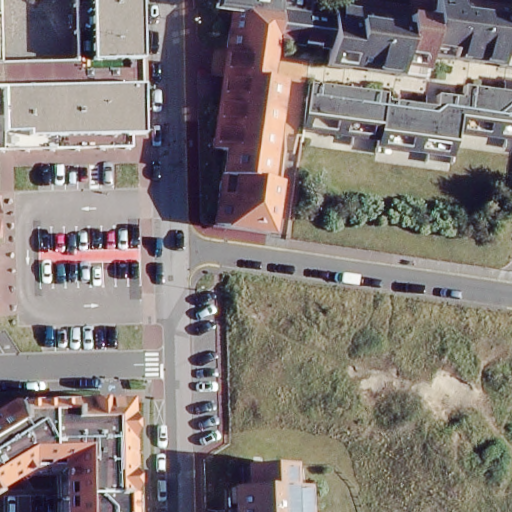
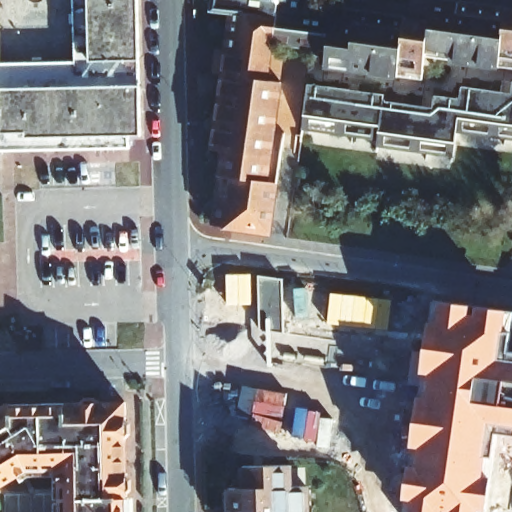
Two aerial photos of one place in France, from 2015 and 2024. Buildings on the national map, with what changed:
unchanged [(87,60),(86,0),(136,0),(137,60),(87,60)]
unchanged [(334,40),(273,31),(229,25),(231,2),(222,0),(316,0),(315,10),(338,12),(334,40)]
unchanged [(434,15),(436,0),(493,0),(512,3),(512,61),(429,50),(426,70),(382,64),(389,9),(434,15)]
unchanged [(332,57),(334,40),(338,12),(339,2),(389,9),(382,64),(332,57)]
unchanged [(226,205),(230,144),(220,144),(228,38),(229,25),(273,31),(271,52),(269,67),(285,69),(275,148),(282,149),(287,149),(280,227),(269,225),(240,221),(225,220),(226,205)]
unchanged [(390,87),(440,94),(442,85),(464,87),(466,76),(512,82),(512,125),(460,119),(457,140),(383,130),(384,125),(309,114),(314,80),(315,72),(380,81),(390,82),(390,87)]
unchanged [(138,137),(129,137),(0,138),(0,82),(137,79),(138,137)]
new [(284,332),(262,328),(259,276),(283,280),(284,332)]
new [(492,457),(486,456),(483,475),(492,476),(488,510),(478,508),(478,512),(410,512),(412,500),(403,498),(409,465),(416,465),(419,448),(411,447),(419,394),(426,395),(430,373),(422,371),(429,321),(436,322),(439,300),(506,310),(503,325),(502,331),(511,332),(508,351),(512,352),(512,435),(496,433),(492,457)]
new [(511,332),(502,331),(503,325),(512,327),(512,352),(508,351),(511,332)]
unchanged [(58,512),(58,474),(31,475),(0,495),(0,410),(9,405),(126,405),(127,512),(58,512)]
unchanged [(287,461),(287,486),(300,486),(301,512),(227,512),(227,488),(240,488),(240,463),(259,462),(287,461)]

